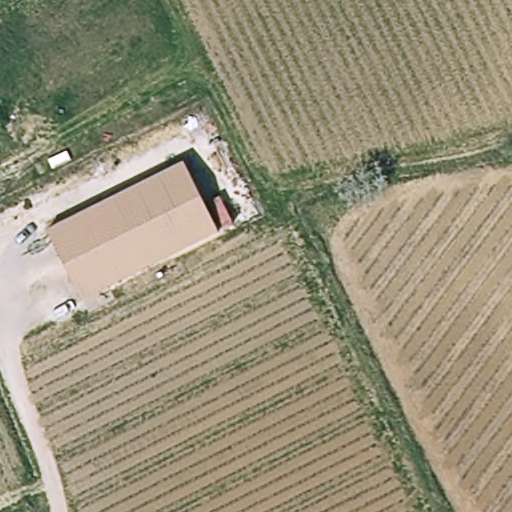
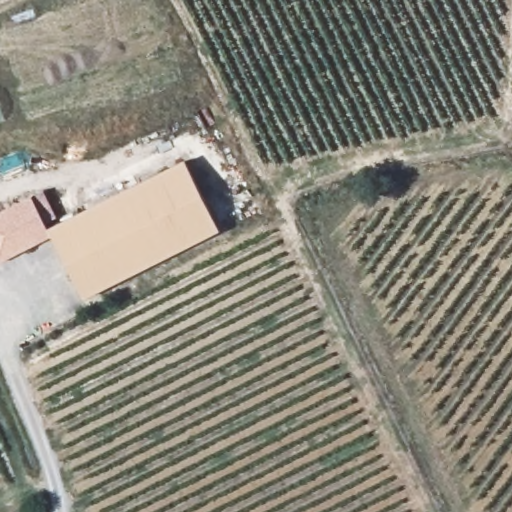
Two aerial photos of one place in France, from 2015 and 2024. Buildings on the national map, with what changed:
unchanged [(219,235),(84,302),(44,227),(183,156),(219,235)]
new [(44,227),(50,238),(0,263),(0,212),(31,197),(44,191),(58,220),(44,227)]

